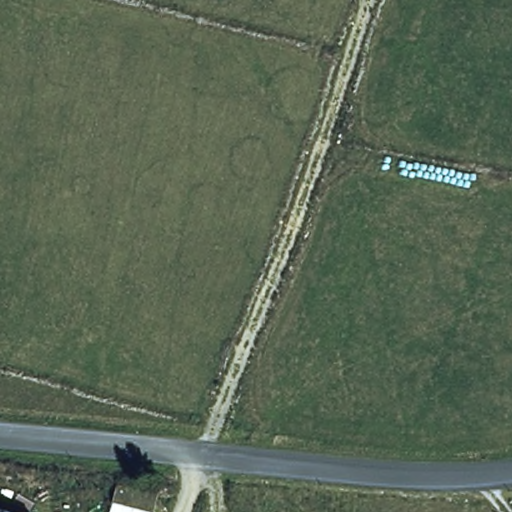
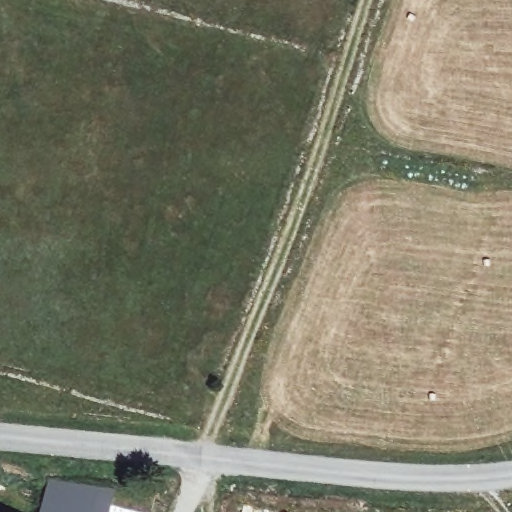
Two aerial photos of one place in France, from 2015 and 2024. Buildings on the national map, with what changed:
unchanged [(115,475),(158,483),(154,512),(109,512),(113,488),(115,475)]
new [(113,488),(109,512),(39,512),(47,480),(113,488)]
unchanged [(0,512),(0,507),(15,512),(0,512)]

